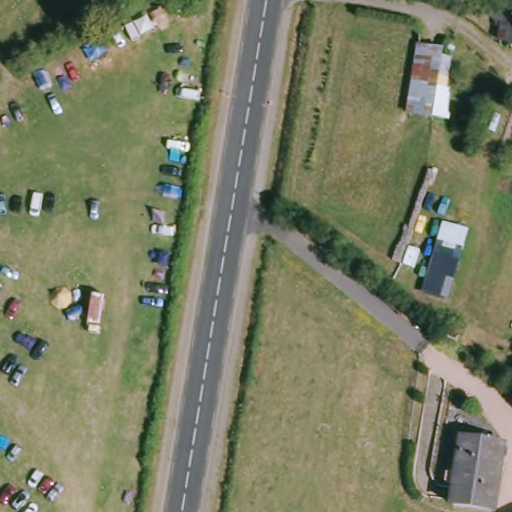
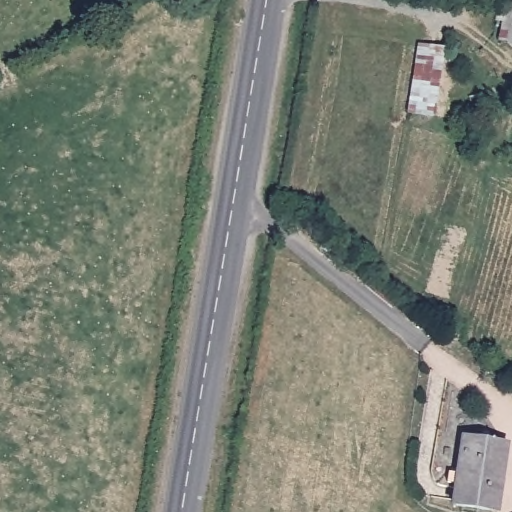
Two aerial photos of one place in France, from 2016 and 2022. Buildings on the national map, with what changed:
unchanged [(507,43),(510,23),(498,21),(501,0),(512,2),(512,44),(507,43)]
unchanged [(292,75),(300,7),(322,11),(315,79),(292,75)]
unchanged [(446,47),(434,119),(404,113),(417,42),(446,47)]
unchanged [(502,443),(497,510),(452,506),(460,439),(502,443)]

